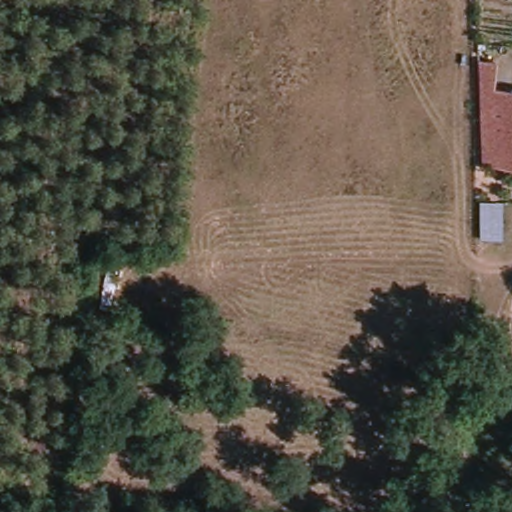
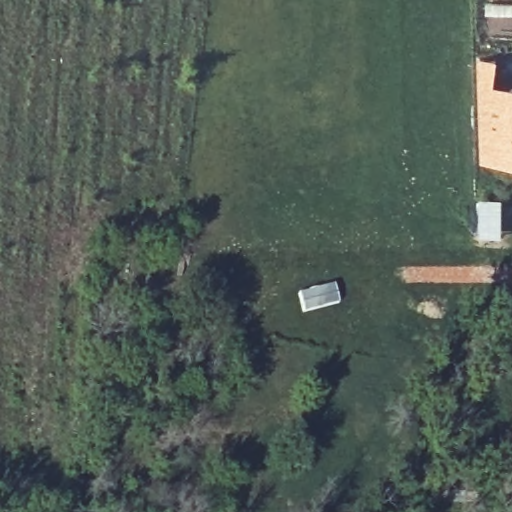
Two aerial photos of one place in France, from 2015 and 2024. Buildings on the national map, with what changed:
unchanged [(487,161),(483,162),(480,56),(497,58),(494,86),(487,161)]
unchanged [(494,86),(512,88),(512,164),(487,161),(494,86)]
unchanged [(487,485),(491,511),(475,512),(459,512),(455,485),(487,485)]

